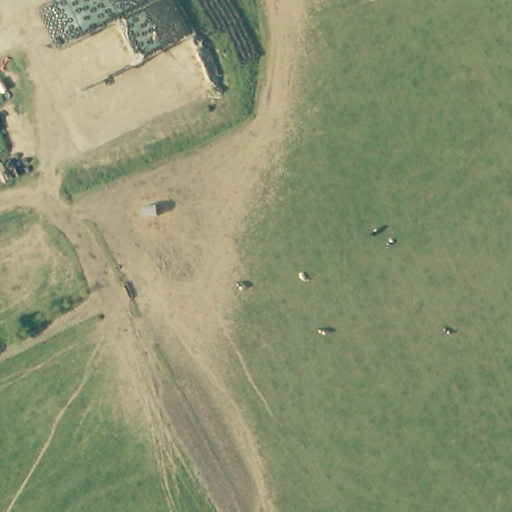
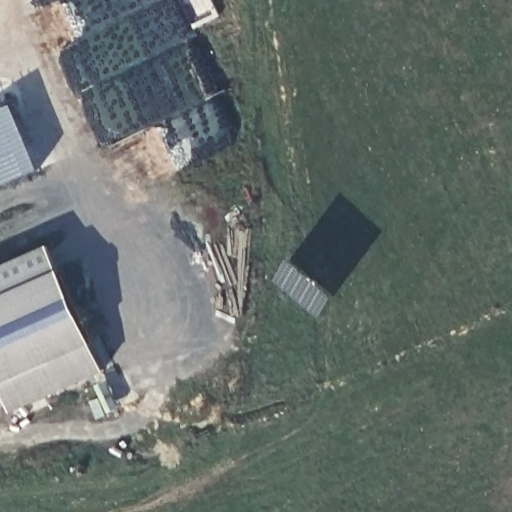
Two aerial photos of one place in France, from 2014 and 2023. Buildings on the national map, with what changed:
new [(50,245),(62,271),(107,369),(15,411),(10,402),(0,407),(0,267),(50,245)]

